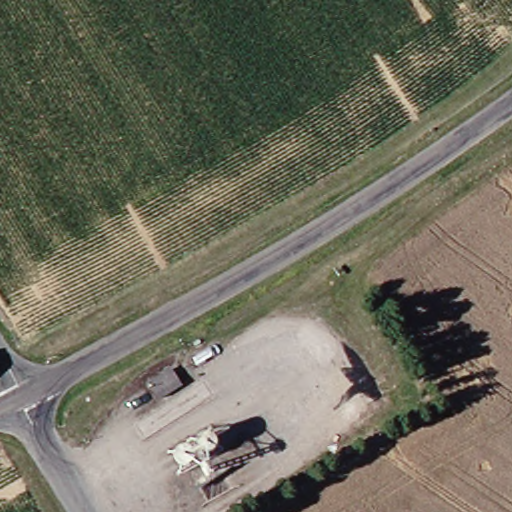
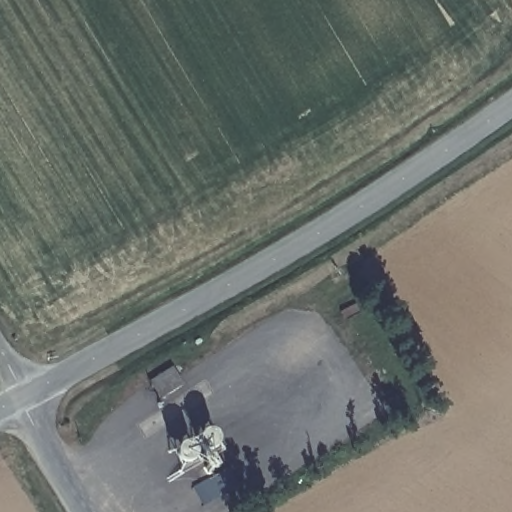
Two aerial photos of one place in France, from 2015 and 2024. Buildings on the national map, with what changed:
unchanged [(187,385),(160,401),(148,383),(175,366),(187,385)]
unchanged [(216,431),(226,447),(185,467),(177,452),(216,431)]

